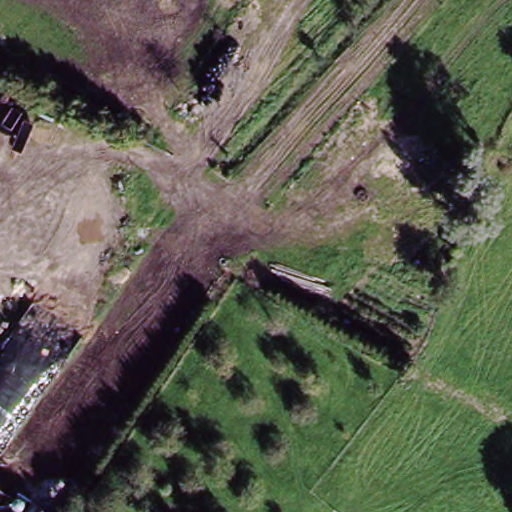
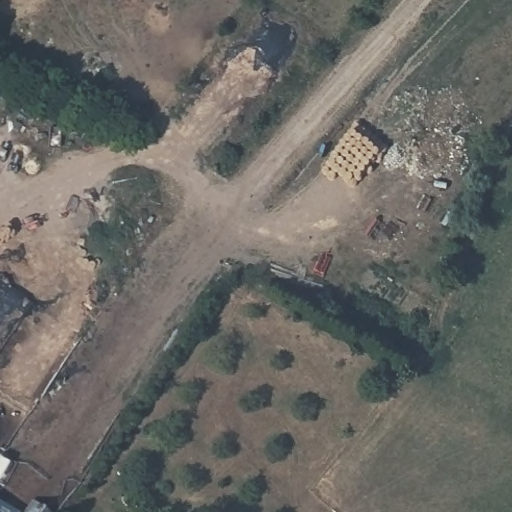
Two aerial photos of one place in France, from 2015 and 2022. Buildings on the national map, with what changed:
unchanged [(27,512),(29,509),(32,512),(27,512)]

